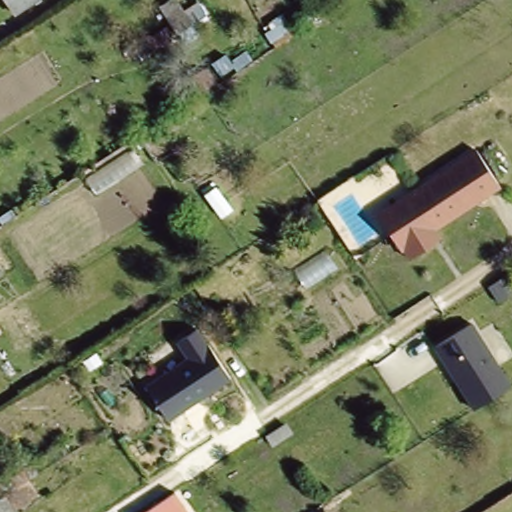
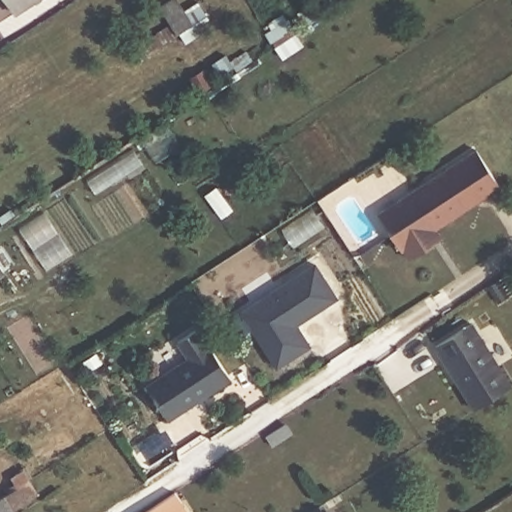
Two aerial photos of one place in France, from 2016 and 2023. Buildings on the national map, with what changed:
unchanged [(26,7),(12,16),(3,0),(37,0),(26,7)]
unchanged [(140,62),(134,52),(190,15),(196,25),(140,62)]
unchanged [(287,17),(297,31),(272,47),(262,32),(287,17)]
unchanged [(500,185),(435,226),(442,237),(406,259),(377,215),(476,149),(500,185)]
new [(294,322),(309,346),(277,367),(242,312),(315,265),(337,298),(307,318),(296,325),(294,322)]
unchanged [(2,278),(0,279),(0,272),(2,278)]
unchanged [(508,384),(474,406),(432,343),(470,322),(508,384)]
unchanged [(230,380),(165,421),(144,387),(182,361),(171,346),(195,328),(230,380)]
unchanged [(0,512),(0,493),(4,490),(29,474),(38,489),(14,505),(17,511),(15,512),(0,512)]
new [(190,512),(151,512),(179,495),(190,512)]

